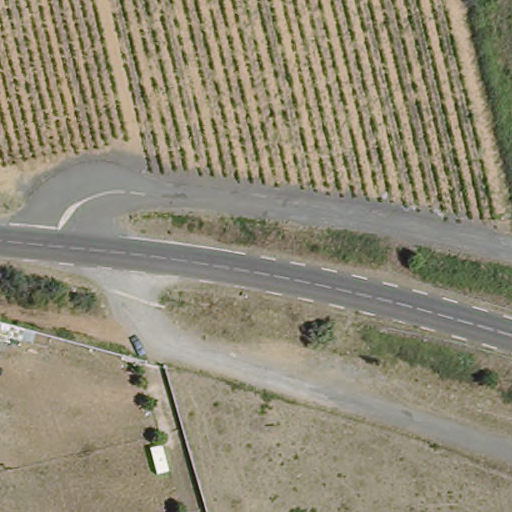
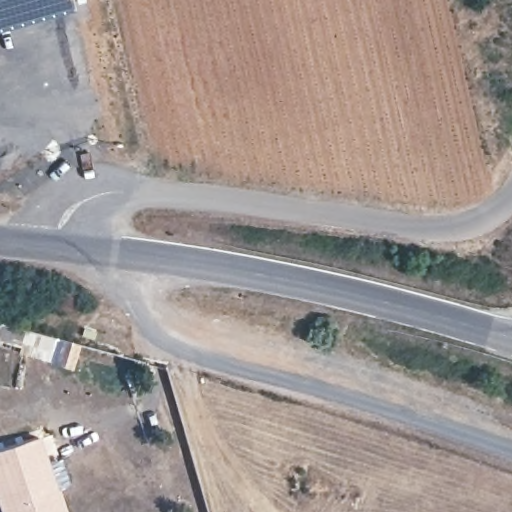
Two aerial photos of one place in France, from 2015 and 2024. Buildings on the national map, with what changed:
new [(60,11),(4,21),(0,22),(0,0),(76,0),(77,6),(60,11)]
new [(0,321),(55,337),(48,362),(18,353),(20,347),(0,341),(0,321)]
new [(0,509),(0,448),(40,435),(65,512),(1,512),(0,509)]

